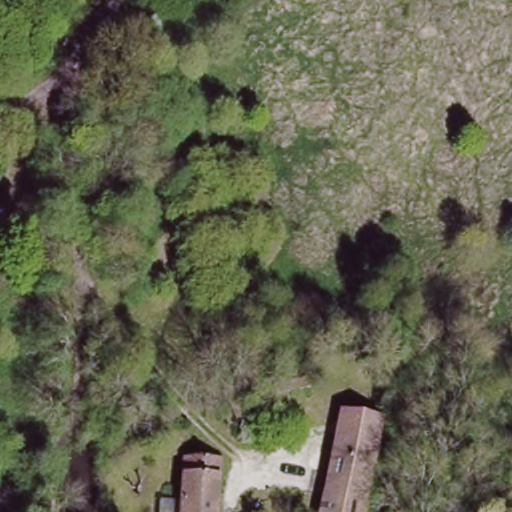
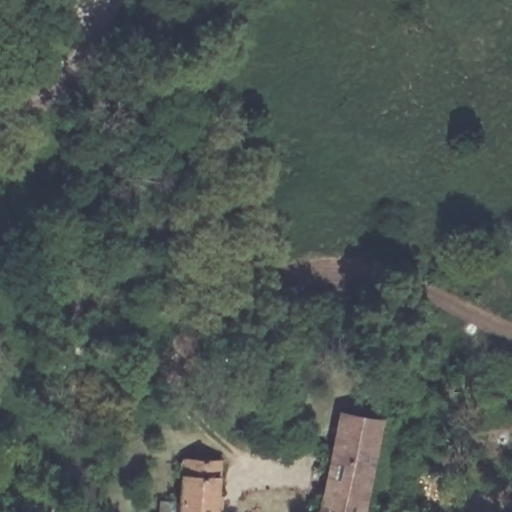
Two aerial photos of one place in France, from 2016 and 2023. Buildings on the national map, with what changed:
unchanged [(292,391),(291,379),(322,376),(322,387),(292,391)]
unchanged [(383,411),(379,438),(366,512),(329,512),(342,433),(347,407),(383,411)]
unchanged [(220,467),(218,512),(183,512),(185,466),(220,467)]

